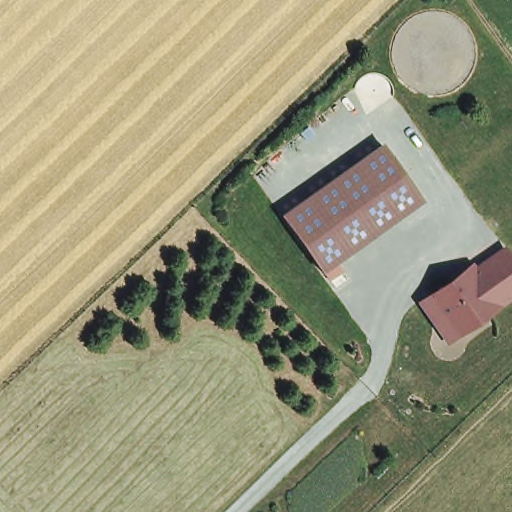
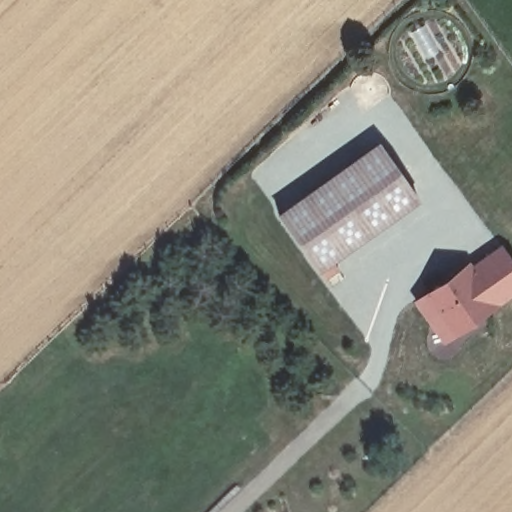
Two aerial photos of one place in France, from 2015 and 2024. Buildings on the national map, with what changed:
unchanged [(382,140),(422,202),(322,273),(280,214),(382,140)]
unchanged [(504,246),(512,258),(512,299),(445,346),(417,304),(504,246)]

